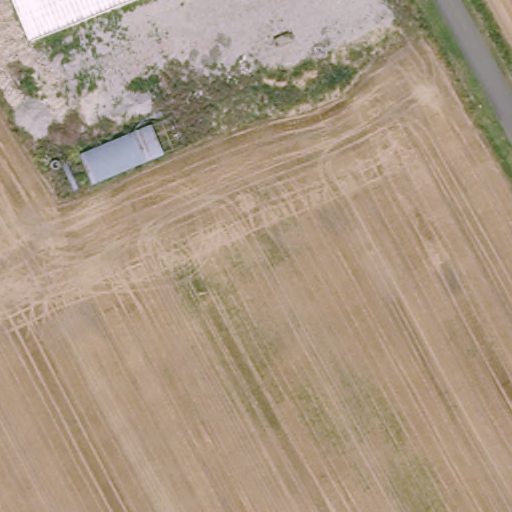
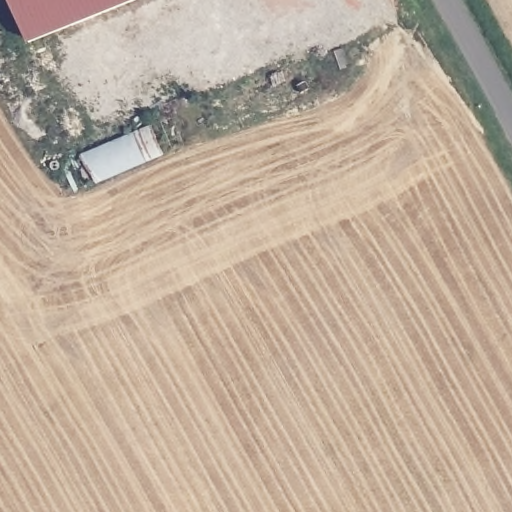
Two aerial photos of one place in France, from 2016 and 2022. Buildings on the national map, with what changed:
unchanged [(17,0),(132,0),(33,40),(17,0)]
unchanged [(173,116),(185,144),(92,184),(81,154),(173,116)]

